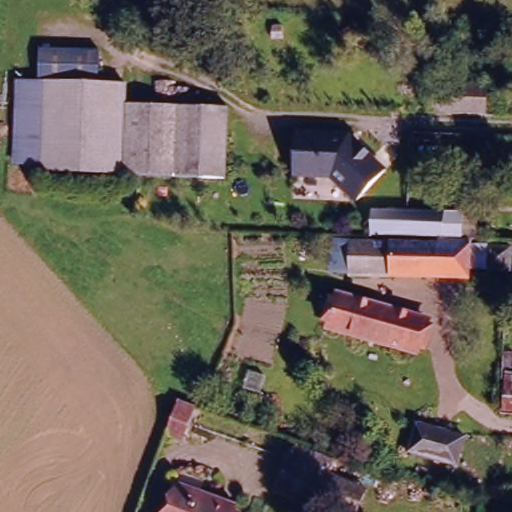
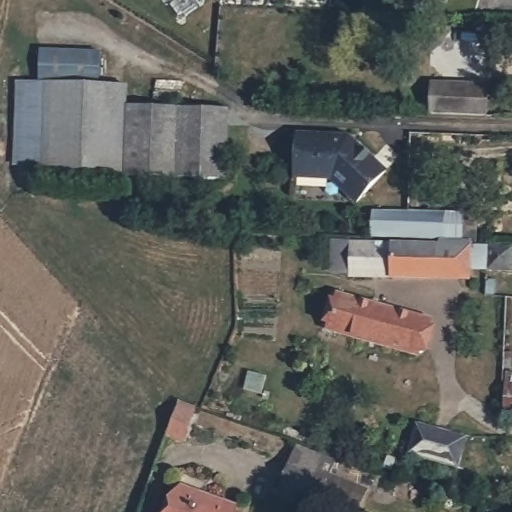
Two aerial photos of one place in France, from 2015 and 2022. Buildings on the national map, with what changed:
unchanged [(230,180),(202,180),(125,179),(12,165),(15,80),(38,80),(40,47),(101,50),(101,83),(128,85),(128,104),(230,109),(230,180)]
unchanged [(468,85),(430,83),(432,54),(488,55),(486,85),(468,85)]
unchanged [(429,115),(430,104),(430,83),(468,85),(486,85),(491,86),(490,106),(490,117),(429,115)]
unchanged [(351,132),(392,167),(360,200),(345,184),(298,182),(299,135),(351,132)]
unchanged [(476,239),(408,237),(370,235),(371,210),(408,211),(477,214),(476,239)]
unchanged [(437,277),(352,275),(352,267),(332,267),(332,242),(352,243),(438,245),(438,246),(437,277)]
unchanged [(457,247),(470,247),(470,278),(457,277),(437,277),(438,246),(457,247)]
unchanged [(490,246),(512,248),(512,259),(512,270),(489,269),(490,246)]
unchanged [(421,352),(335,328),(345,295),(433,320),(421,352)]
unchanged [(509,352),(512,352),(512,368),(508,367),(509,352)]
unchanged [(511,376),(512,376),(512,412),(509,412),(511,376)]
unchanged [(193,408),(182,440),(168,435),(179,403),(193,408)]
unchanged [(457,462),(409,448),(417,420),(465,433),(457,462)]
unchanged [(321,512),(285,497),(275,493),(292,452),(302,456),(330,467),(325,480),(353,492),(362,495),(355,512),(321,512)]
unchanged [(172,512),(182,486),(237,506),(234,512),(172,512)]

